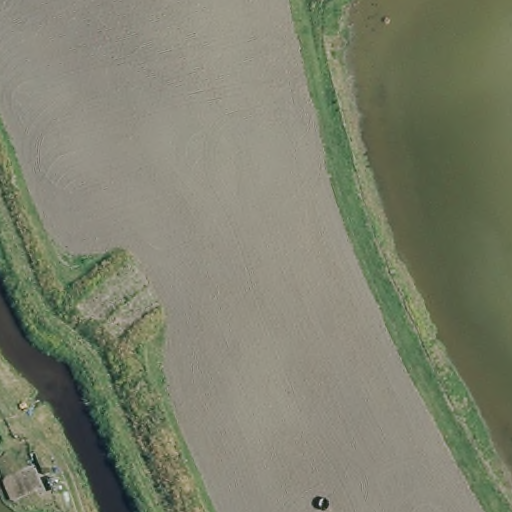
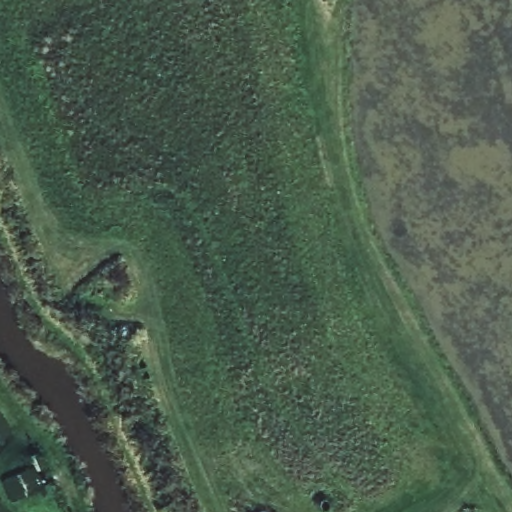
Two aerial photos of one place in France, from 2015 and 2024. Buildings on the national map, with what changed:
unchanged [(45,491),(12,502),(4,482),(35,467),(45,491)]

